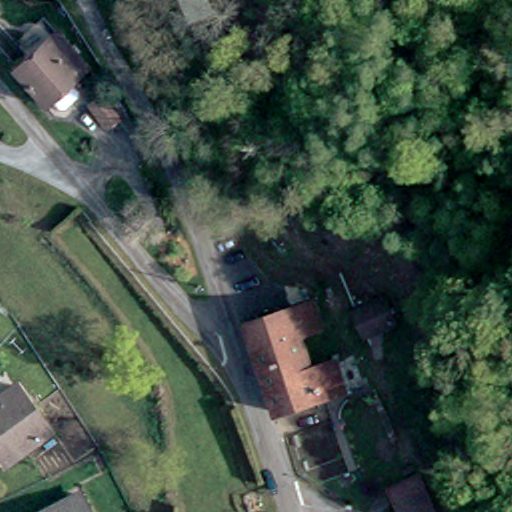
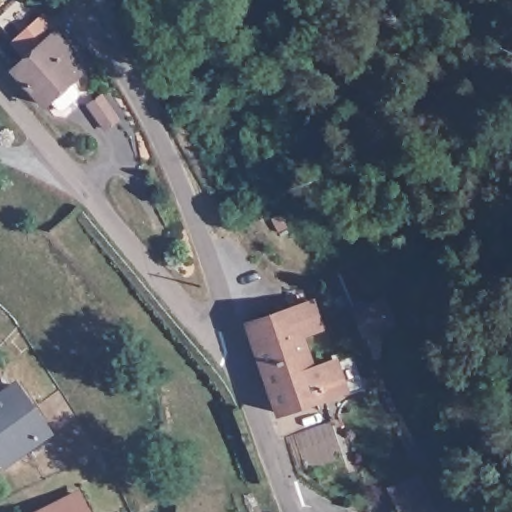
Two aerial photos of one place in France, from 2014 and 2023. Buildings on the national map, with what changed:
unchanged [(45,33),(74,66),(56,82),(65,91),(64,97),(50,110),(44,110),(35,100),(30,105),(0,72),(45,33)]
unchanged [(111,133),(97,111),(110,102),(125,123),(111,133)]
unchanged [(349,379),(269,406),(241,318),(308,295),(314,318),(291,328),(304,364),(336,353),(349,349),(358,376),(349,379)]
unchanged [(404,361),(380,369),(370,339),(395,330),(404,361)]
unchanged [(0,464),(0,402),(18,390),(48,439),(3,468),(0,464)]
unchanged [(436,512),(401,512),(400,508),(429,496),(436,512)]
unchanged [(79,501),(85,512),(55,512),(79,501)]

